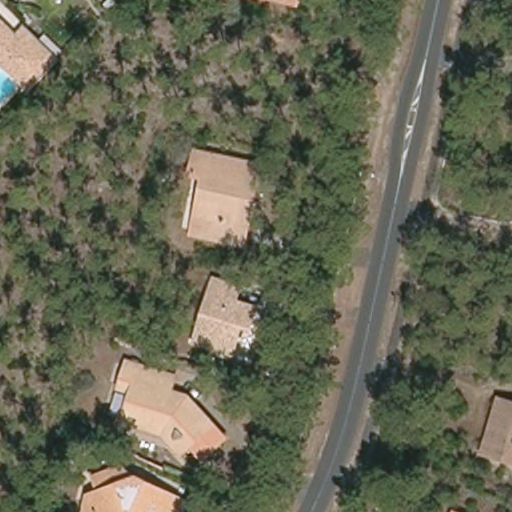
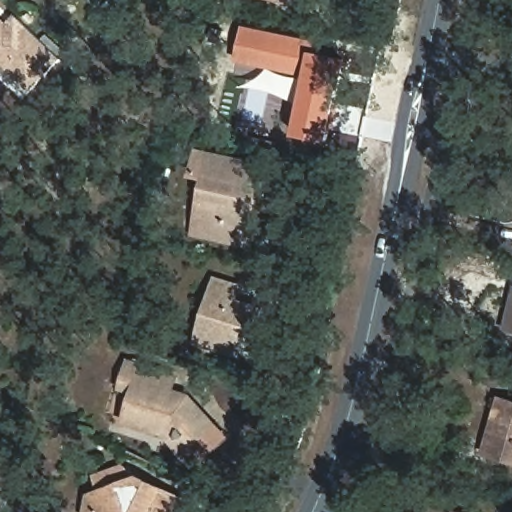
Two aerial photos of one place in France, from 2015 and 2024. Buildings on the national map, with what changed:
unchanged [(22,24),(56,59),(26,91),(0,66),(0,19),(14,32),(22,24)]
new [(350,59),(346,77),(343,77),(329,142),(294,135),(306,77),(236,62),(243,26),(314,41),(312,51),(350,59)]
unchanged [(234,230),(193,221),(201,176),(189,174),(193,157),(246,166),(234,230)]
unchanged [(257,169),(242,246),(191,237),(193,221),(234,230),(246,166),(257,169)]
unchanged [(237,301),(253,306),(247,331),(239,330),(232,354),(199,343),(216,281),(241,287),(237,301)]
new [(504,330),(512,294),(512,332),(504,330)]
unchanged [(165,429),(125,416),(134,386),(121,383),(129,358),(169,368),(181,372),(176,388),(187,391),(224,435),(202,453),(190,439),(181,446),(165,429)]
unchanged [(495,450),(487,447),(499,402),(507,404),(512,405),(512,455),(495,450)]
unchanged [(136,512),(134,511),(131,512),(101,512),(93,506),(91,495),(94,486),(98,482),(94,468),(120,460),(123,472),(130,473),(134,471),(186,494),(177,512),(136,512)]

